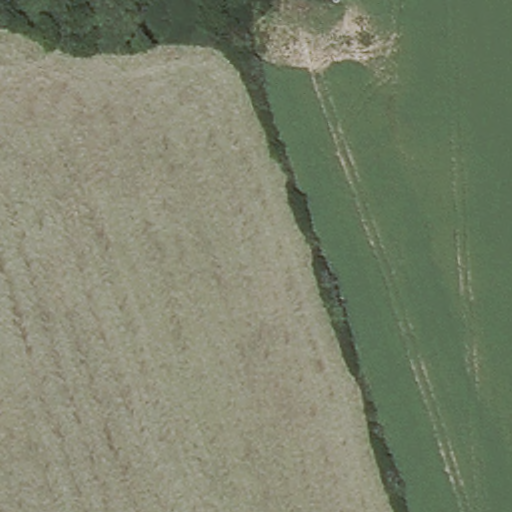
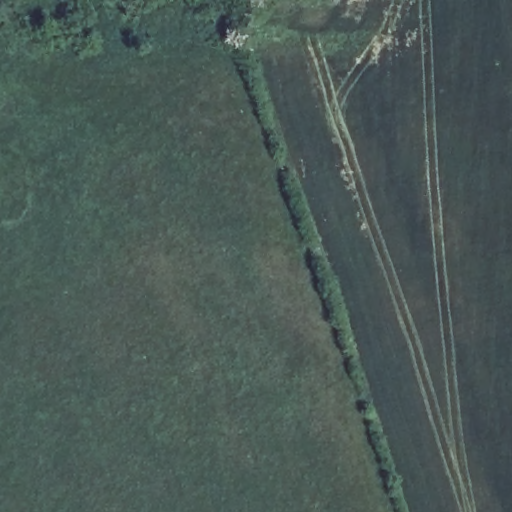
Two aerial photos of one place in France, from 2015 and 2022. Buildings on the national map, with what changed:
[]

